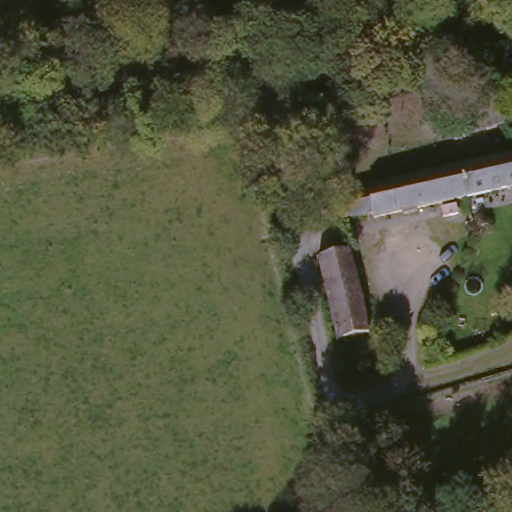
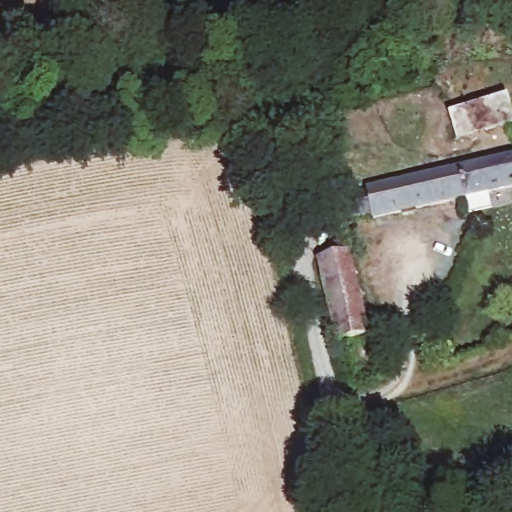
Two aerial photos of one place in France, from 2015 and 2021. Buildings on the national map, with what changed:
unchanged [(512,124),(512,153),(458,165),(451,137),(512,124)]
unchanged [(512,194),(371,227),(360,196),(512,161),(512,194)]
unchanged [(350,256),(370,335),(336,343),(315,263),(350,256)]

